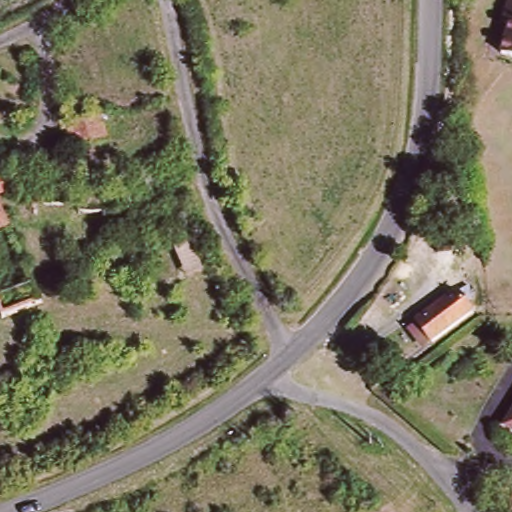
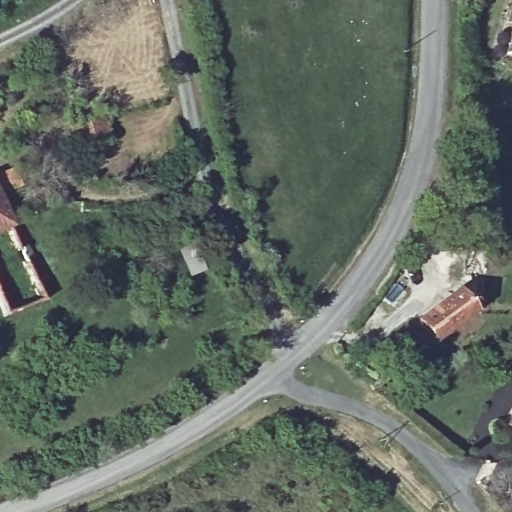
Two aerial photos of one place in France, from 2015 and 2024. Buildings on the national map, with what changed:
unchanged [(501,57),(511,22),(506,20),(512,0),(512,61),(501,57)]
unchanged [(107,140),(75,146),(70,121),(101,115),(107,140)]
unchanged [(24,190),(0,199),(0,177),(15,170),(24,190)]
unchanged [(0,238),(0,200),(13,233),(0,238)]
unchanged [(81,206),(81,209),(34,213),(34,205),(80,203),(81,206)]
unchanged [(0,299),(36,285),(47,310),(4,328),(0,318),(0,299)]
unchanged [(416,324),(456,295),(473,317),(432,346),(416,324)]
unchanged [(504,428),(512,415),(512,432),(504,428)]

